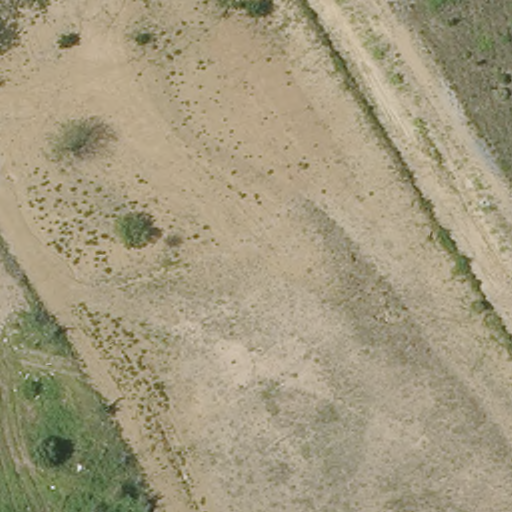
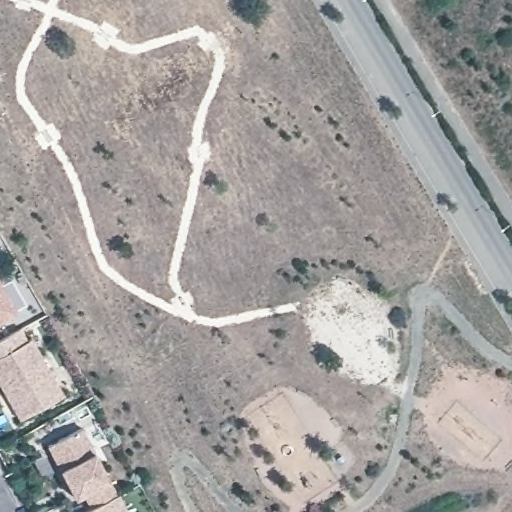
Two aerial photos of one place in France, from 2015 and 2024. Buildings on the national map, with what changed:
new [(17,312),(0,322),(0,282),(17,312)]
new [(0,393),(0,352),(26,337),(58,394),(20,416),(15,419),(0,393)]
new [(77,426),(112,493),(95,502),(87,507),(79,492),(71,496),(43,444),(77,426)]
new [(87,507),(95,502),(112,493),(123,512),(77,512),(87,507)]

